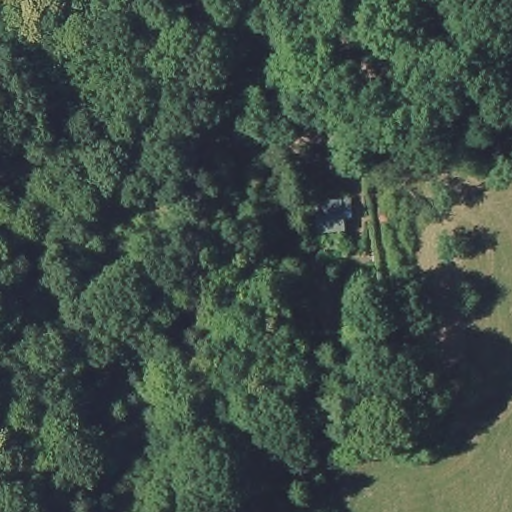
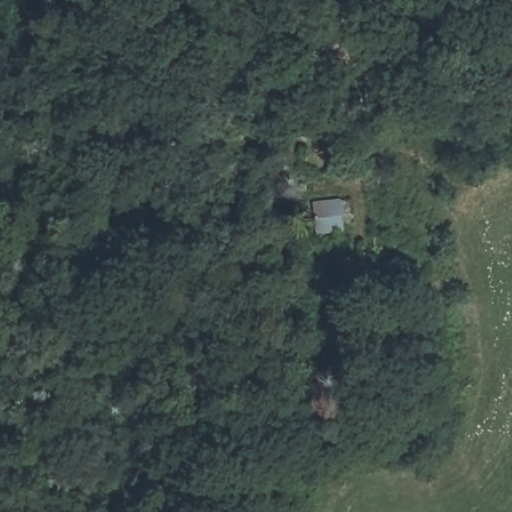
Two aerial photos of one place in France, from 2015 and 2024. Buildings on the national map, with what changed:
unchanged [(349,222),(315,229),(304,194),(341,190),(349,222)]

